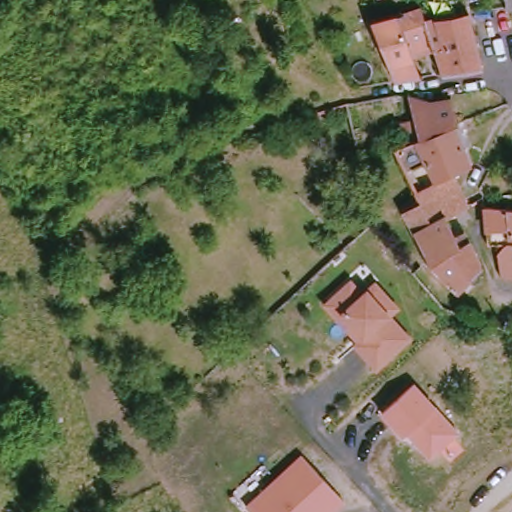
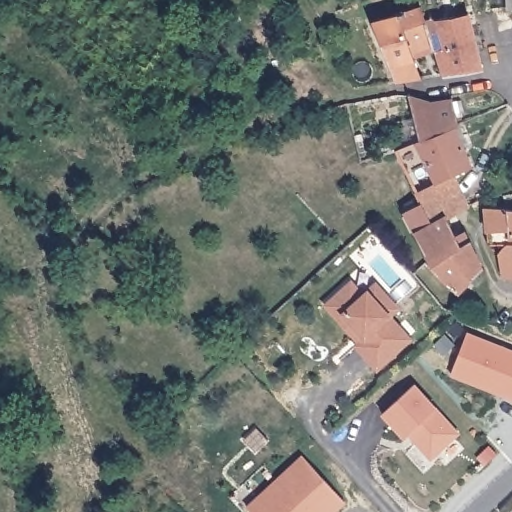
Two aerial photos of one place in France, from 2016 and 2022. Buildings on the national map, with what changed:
unchanged [(429,55),(425,40),(422,25),(437,20),(431,0),(448,0),(453,15),(460,12),(476,73),(440,78),(432,55),(429,55)]
unchanged [(507,0),(512,0),(512,4),(507,5),(507,0)]
unchanged [(367,25),(419,14),(422,25),(425,40),(408,45),(415,83),(392,86),(367,25)]
unchanged [(395,95),(402,94),(412,99),(430,104),(450,100),(455,124),(450,125),(413,140),(395,95)]
unchanged [(413,140),(450,125),(460,147),(468,167),(451,175),(409,192),(390,149),(413,140)]
unchanged [(423,228),(410,197),(409,192),(451,175),(463,205),(445,216),(423,228)]
unchanged [(428,269),(405,240),(409,237),(396,202),(410,197),(423,228),(445,216),(450,229),(458,244),(466,240),(480,269),(461,296),(428,269)]
unchanged [(484,225),(482,214),(505,214),(512,214),(512,284),(500,282),(493,252),(490,252),(484,225)]
unchanged [(366,293),(377,283),(403,310),(394,318),(413,340),(379,373),(355,345),(358,342),(324,305),(353,280),(366,293)]
new [(467,332),(512,350),(512,399),(450,375),(467,332)]
unchanged [(459,433),(429,460),(406,433),(401,438),(380,414),(413,382),(459,433)]
unchanged [(348,505),(341,512),(251,512),(247,508),(304,457),(348,505)]

